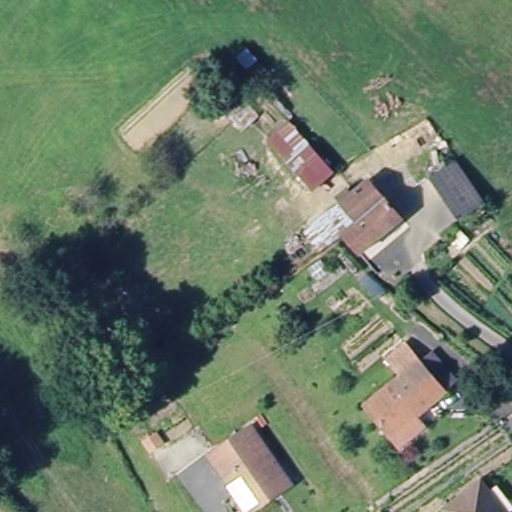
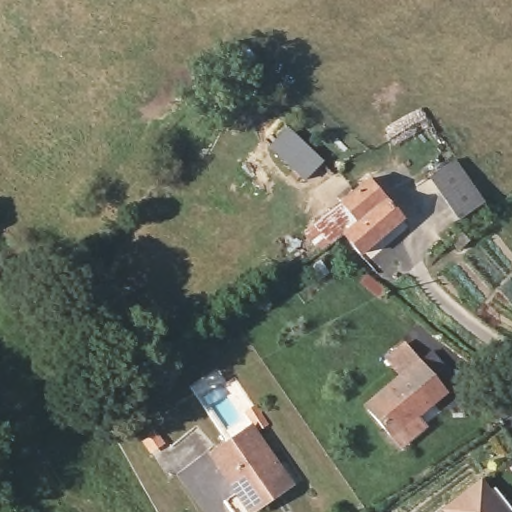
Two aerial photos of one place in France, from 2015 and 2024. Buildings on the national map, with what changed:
unchanged [(268,143),(292,120),(334,164),(311,190),(268,143)]
unchanged [(451,174),(472,203),(452,217),(432,190),(451,174)]
unchanged [(312,220),(324,211),(346,194),(368,177),(402,221),(358,256),(344,237),(338,230),(325,239),(312,220)]
unchanged [(422,369),(448,398),(392,448),(366,418),(422,369)]
unchanged [(250,427),(288,478),(246,510),(207,458),(250,427)]
unchanged [(487,482),(507,512),(453,512),(450,507),(487,482)]

